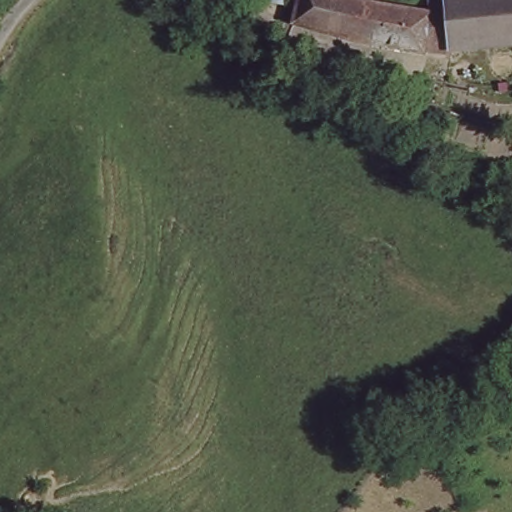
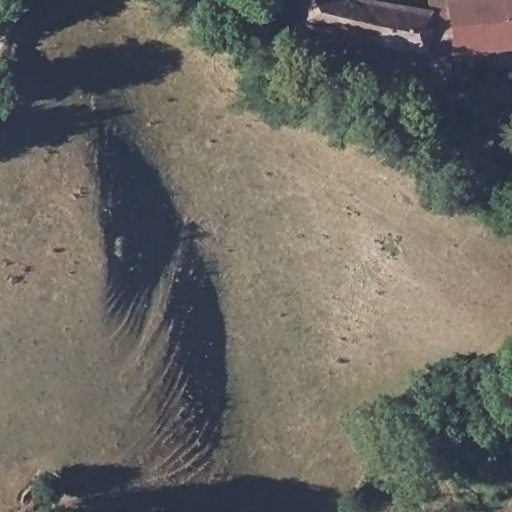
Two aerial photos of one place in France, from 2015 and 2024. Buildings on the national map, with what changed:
unchanged [(370,3),(425,12),(421,53),(349,39),(292,21),(298,0),(359,0),(370,3)]
unchanged [(428,0),(434,0),(445,1),(444,45),(494,44),(494,53),(450,55),(421,53),(425,12),(428,0)]
unchanged [(494,53),(494,44),(444,45),(445,1),(461,0),(512,0),(512,53),(501,53),(494,53)]

